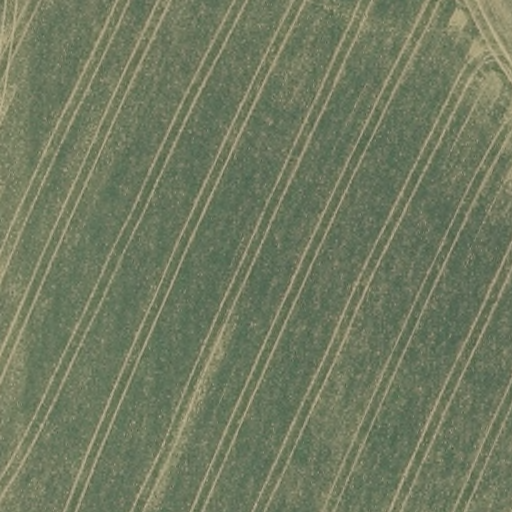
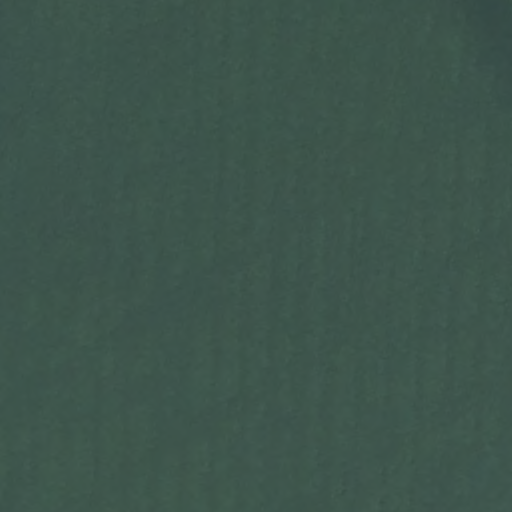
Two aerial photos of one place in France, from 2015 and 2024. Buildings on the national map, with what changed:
[]

